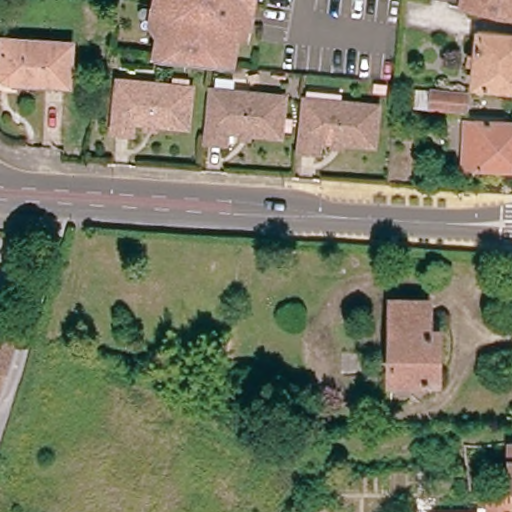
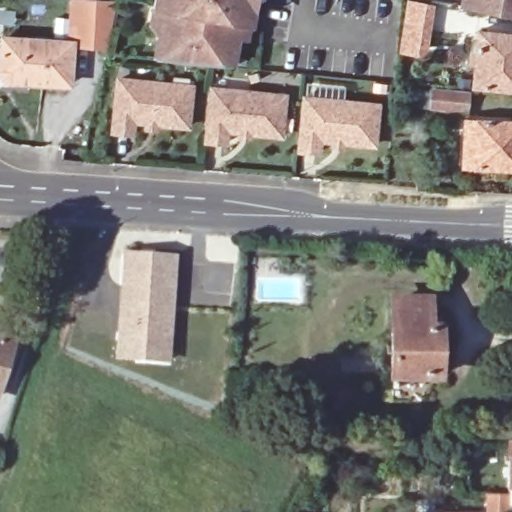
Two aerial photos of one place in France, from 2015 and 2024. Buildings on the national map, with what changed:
new [(107,47),(71,46),(71,42),(68,42),(71,0),(110,0),(118,1),(107,47)]
unchanged [(229,61),(214,60),(153,54),(163,2),(157,2),(157,0),(250,0),(250,2),(247,19),(238,17),(229,61)]
unchanged [(461,0),(512,0),(512,11),(461,2),(461,0)]
unchanged [(478,31),(512,34),(512,91),(472,87),(478,31)]
unchanged [(71,42),(68,84),(8,80),(10,56),(1,55),(2,39),(71,42)]
unchanged [(146,127),(147,122),(133,121),(132,133),(112,131),(117,79),(191,87),(187,126),(155,123),(154,128),(146,127)]
unchanged [(240,137),(240,132),(226,130),(225,142),(206,141),(211,89),(284,96),(280,136),(248,132),(248,137),(240,137)]
unchanged [(468,96),(466,112),(429,109),(431,92),(468,96)]
unchanged [(332,146),(333,141),(319,140),(318,152),(300,150),(298,150),(304,97),(304,98),(377,105),(373,145),(341,142),(341,147),(332,146)]
unchanged [(465,123),(512,124),(512,170),(464,169),(465,123)]
new [(177,254),(170,361),(115,360),(121,251),(177,254)]
unchanged [(391,377),(391,302),(426,302),(426,321),(436,320),(436,332),(436,377),(391,377)]
unchanged [(12,341),(0,380),(0,337),(12,341)]
unchanged [(510,491),(509,491),(510,441),(512,441),(512,508),(510,508),(510,491)]
unchanged [(509,491),(508,511),(488,511),(489,492),(509,491)]

